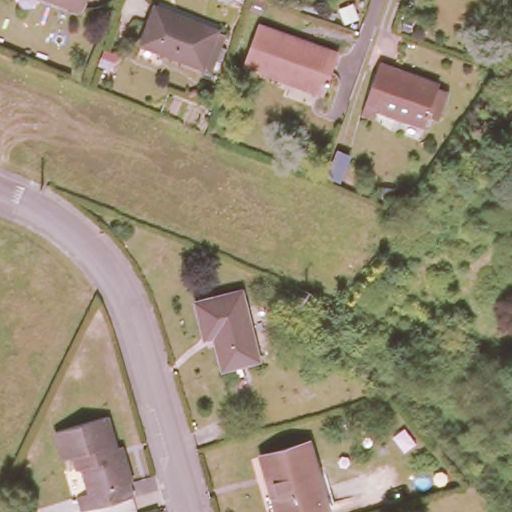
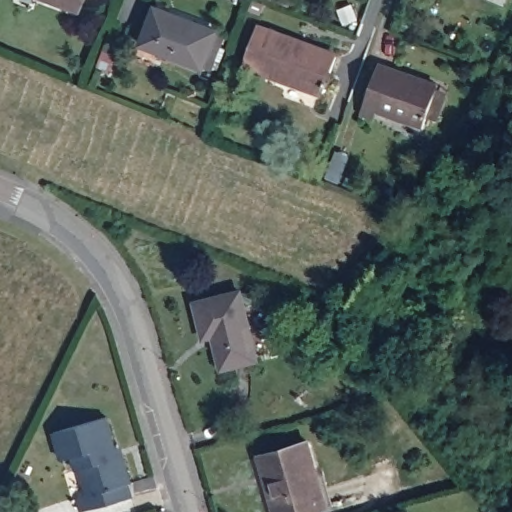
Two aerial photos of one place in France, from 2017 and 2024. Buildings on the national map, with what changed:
unchanged [(52,0),(83,0),(79,10),(52,0)]
unchanged [(203,72),(193,68),(131,46),(145,7),(207,30),(206,34),(215,37),(203,72)]
unchanged [(330,55),(317,92),(240,66),(254,27),(330,55)]
unchanged [(361,114),(355,112),(358,104),(364,106),(378,65),(438,86),(437,89),(448,92),(447,97),(438,121),(427,117),(423,127),(375,110),(372,118),(361,114)]
unchanged [(493,178),(485,191),(468,179),(477,167),(493,178)]
unchanged [(218,368),(210,335),(200,337),(192,303),(236,291),(253,359),(218,368)]
unchanged [(108,457),(113,456),(122,482),(119,483),(122,497),(76,511),(72,497),(80,494),(72,468),(67,470),(64,456),(53,460),(45,432),(97,417),(108,457)]
unchanged [(324,508),(310,512),(273,512),(256,456),(305,442),(318,487),(324,508)]

